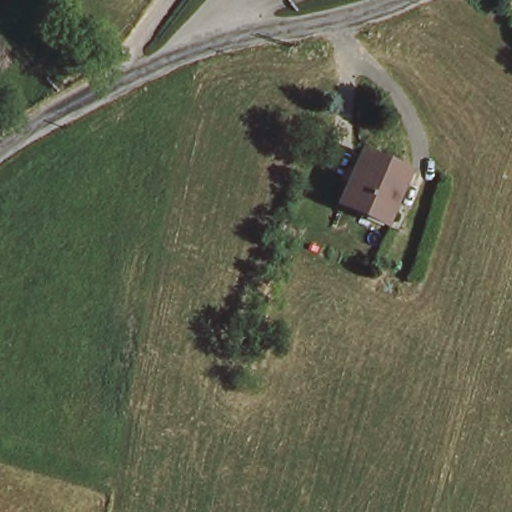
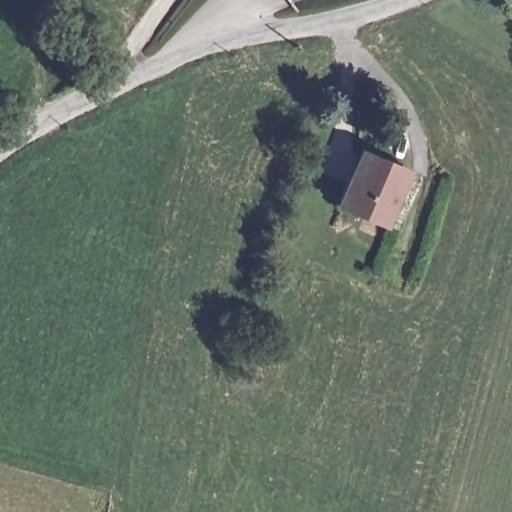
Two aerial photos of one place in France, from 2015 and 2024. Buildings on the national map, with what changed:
unchanged [(403,177),(382,224),(336,205),(356,157),(403,177)]

